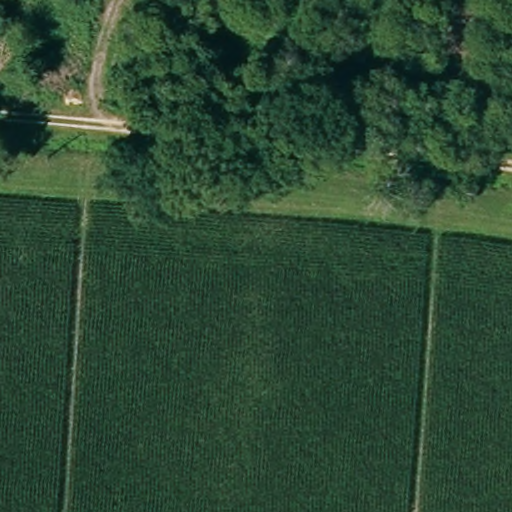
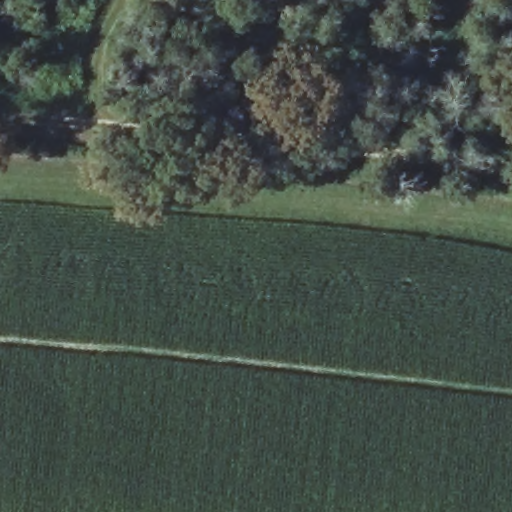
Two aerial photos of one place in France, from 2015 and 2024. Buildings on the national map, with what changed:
unchanged [(369,15),(371,0),(395,0),(391,19),(369,15)]
unchanged [(449,28),(454,0),(479,0),(474,34),(449,28)]

